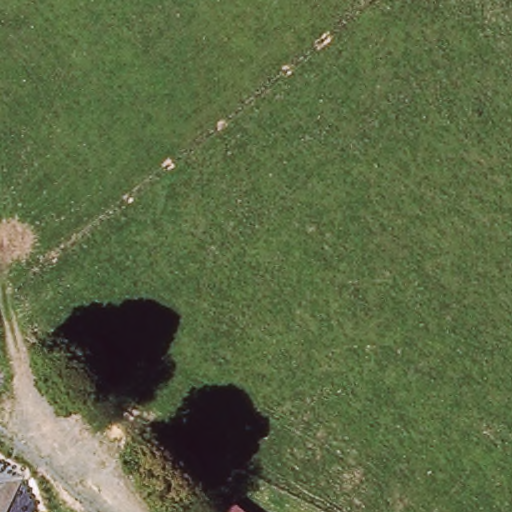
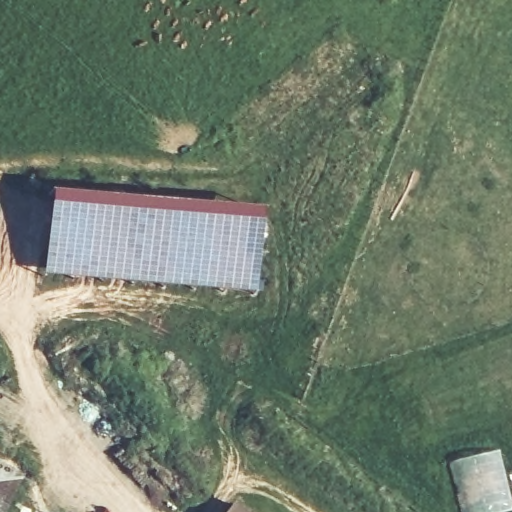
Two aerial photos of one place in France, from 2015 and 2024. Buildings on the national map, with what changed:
new [(251,294),(43,275),(49,195),(260,212),(251,294)]
unchanged [(18,477),(1,512),(0,512),(0,469),(18,477)]
unchanged [(236,512),(230,512),(233,509),(236,512)]

